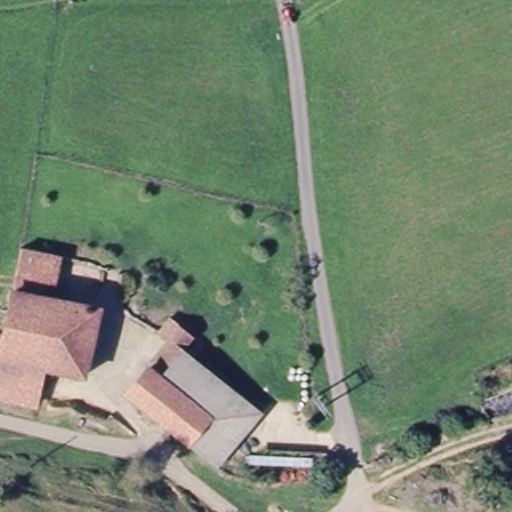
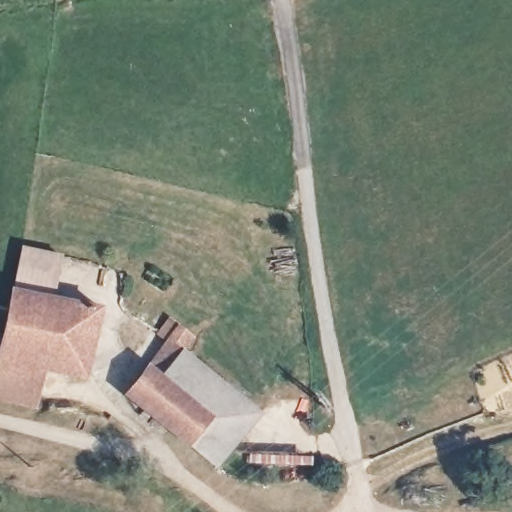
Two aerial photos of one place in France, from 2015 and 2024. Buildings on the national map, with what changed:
unchanged [(25,241),(61,248),(52,295),(15,288),(25,241)]
unchanged [(103,306),(87,377),(48,370),(0,361),(0,358),(15,288),(52,295),(103,306)]
unchanged [(194,337),(185,349),(262,412),(216,466),(191,445),(129,393),(169,342),(161,336),(173,320),(194,337)]
unchanged [(15,402),(0,398),(0,361),(48,370),(40,406),(15,402)]

